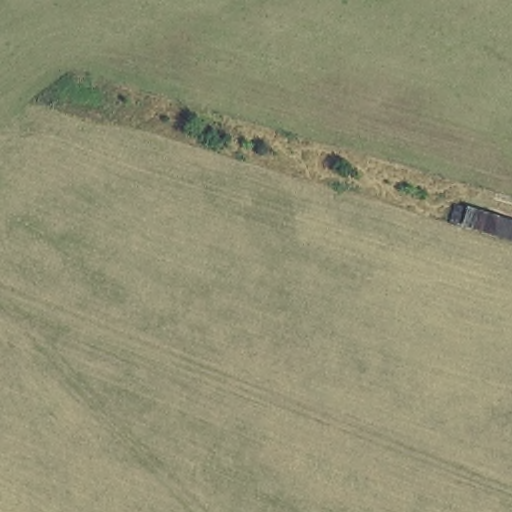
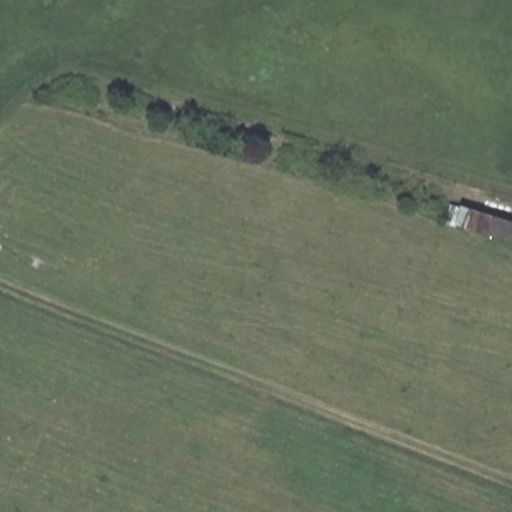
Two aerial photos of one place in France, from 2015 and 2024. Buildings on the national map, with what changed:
unchanged [(456,230),(462,204),(512,220),(512,246),(456,230)]

